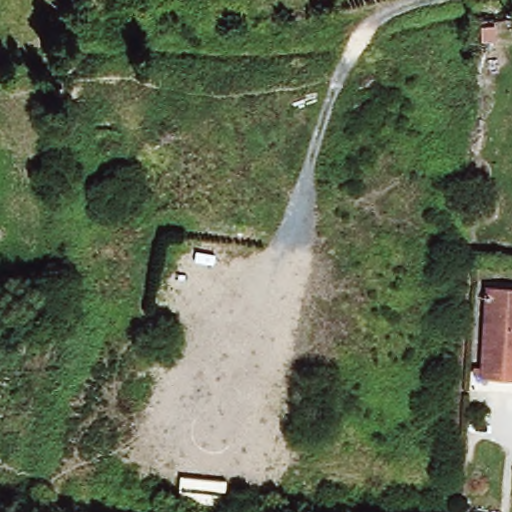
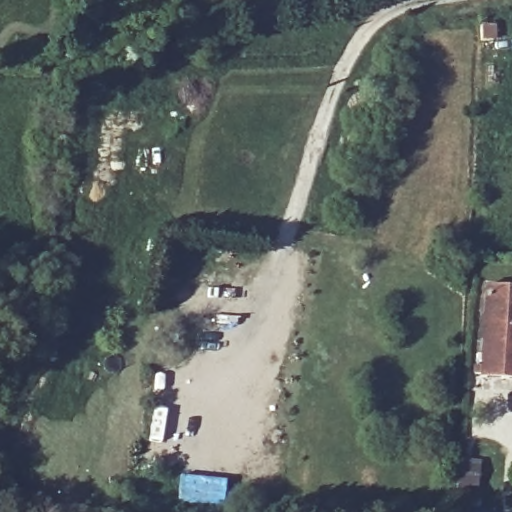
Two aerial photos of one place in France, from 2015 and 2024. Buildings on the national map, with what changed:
unchanged [(483,286),(512,287),(512,381),(479,380),(483,286)]

